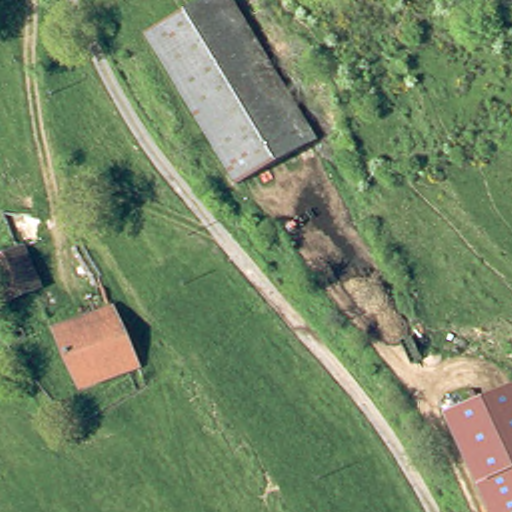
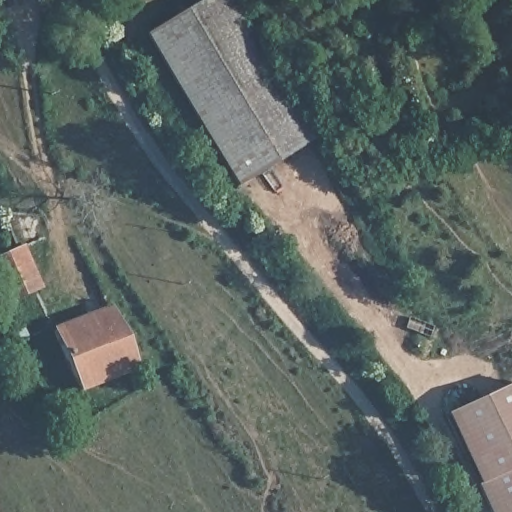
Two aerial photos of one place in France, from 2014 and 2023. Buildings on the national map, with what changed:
unchanged [(309,135),(280,152),(227,183),(145,40),(139,30),(170,11),(190,0),(231,0),(309,135)]
unchanged [(7,262),(27,252),(40,280),(20,290),(0,300),(0,265),(7,262)]
unchanged [(137,362),(80,390),(53,330),(111,302),(137,362)]
unchanged [(512,388),(512,512),(484,512),(442,421),(512,388)]

